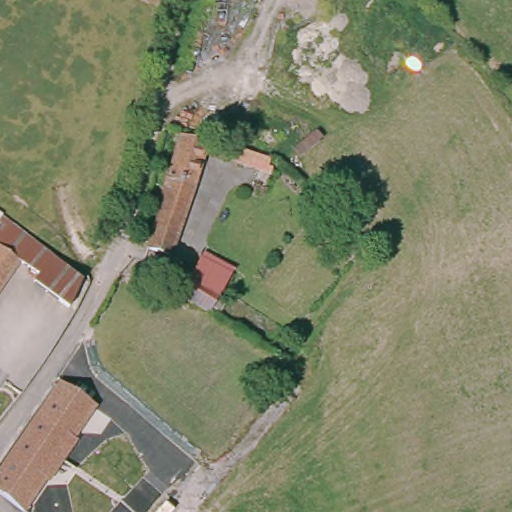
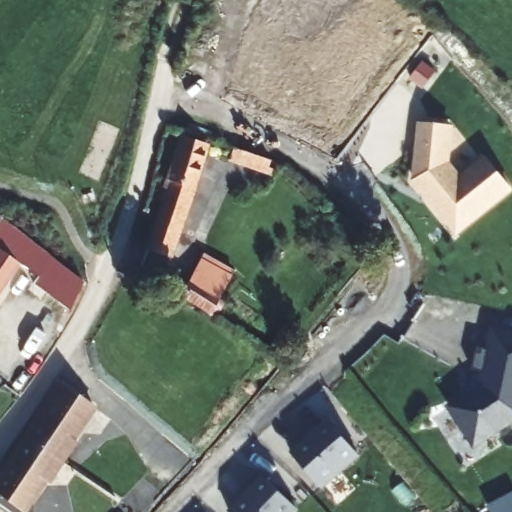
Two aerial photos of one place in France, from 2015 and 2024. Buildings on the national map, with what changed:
new [(412,180),(419,122),(454,125),(451,162),(462,174),(485,155),(512,189),(512,191),(457,237),(412,180)]
unchanged [(228,136),(265,154),(257,170),(220,154),(228,136)]
unchanged [(200,146),(165,257),(146,251),(180,139),(200,146)]
unchanged [(3,218),(14,226),(82,277),(87,307),(80,322),(41,290),(50,278),(26,259),(0,297),(0,216),(3,218)]
demolished [(193,275),(206,284),(224,252),(231,256),(236,259),(226,281),(219,292),(227,297),(211,322),(178,302),(193,275)]
new [(210,313),(181,295),(204,252),(235,269),(210,313)]
new [(447,406),(478,386),(482,372),(473,369),(477,346),(488,348),(493,324),(512,329),(512,423),(474,449),(447,406)]
unchanged [(59,387),(90,404),(83,428),(22,511),(0,495),(0,474),(59,387)]
new [(358,454),(322,486),(292,453),(328,422),(358,454)]
new [(290,509),(287,512),(227,512),(258,479),(290,509)]

